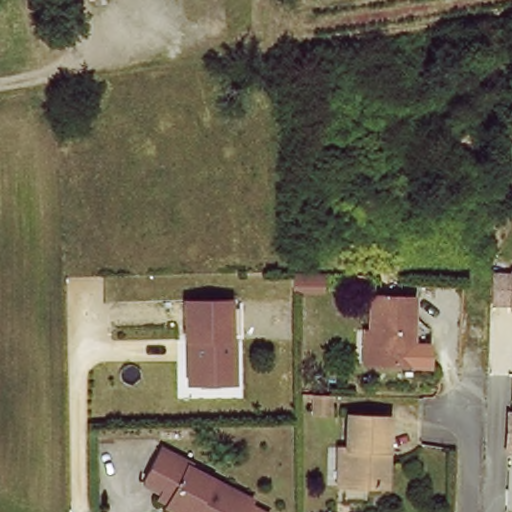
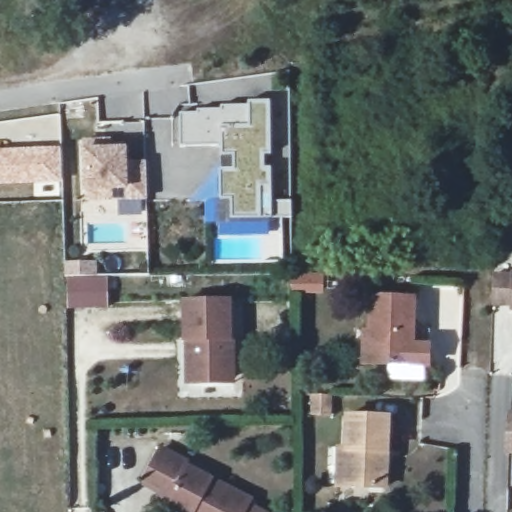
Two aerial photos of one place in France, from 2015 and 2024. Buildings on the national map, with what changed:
new [(199,115),(198,110),(223,110),(223,107),(249,106),(248,102),(270,101),(271,155),(264,155),(264,170),(271,170),(271,204),(292,204),(292,220),(272,220),(272,224),(218,225),(217,200),(222,200),(219,171),(222,171),(221,146),(181,147),(180,115),(199,115)]
new [(112,139),(112,144),(128,144),(127,147),(129,160),(148,161),(149,200),(87,204),(85,192),(83,149),(84,140),(112,139)]
new [(60,145),(62,182),(0,185),(0,147),(60,145)]
new [(97,260),(98,275),(108,275),(108,307),(66,308),(64,261),(97,260)]
unchanged [(323,291),(293,290),(293,274),(323,275),(323,291)]
unchanged [(498,303),(499,276),(500,276),(512,276),(512,304),(499,303),(498,303)]
unchanged [(369,326),(375,326),(377,291),(420,293),(419,328),(417,328),(416,361),(376,359),(368,359),(369,326)]
unchanged [(221,385),(192,385),(183,385),(183,341),(182,301),(227,301),(228,340),(230,340),(230,360),(230,385),(221,385)]
unchanged [(331,415),(314,415),(315,396),(332,397),(331,415)]
unchanged [(340,447),(347,448),(349,415),(389,416),(386,488),(345,487),(338,486),(340,447)]
unchanged [(165,505),(166,502),(158,497),(163,487),(144,478),(160,448),(188,463),(186,466),(249,500),(242,512),(177,512),(165,505)]

